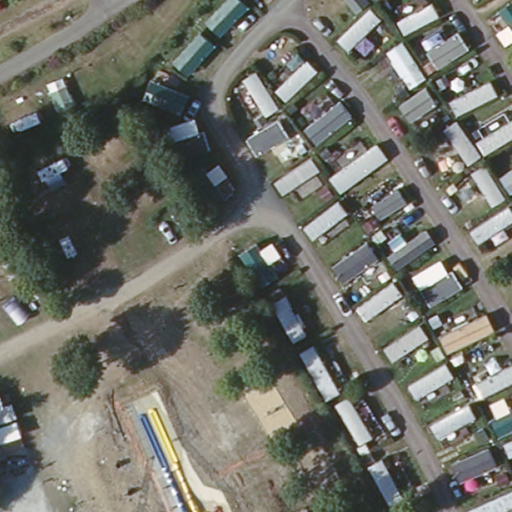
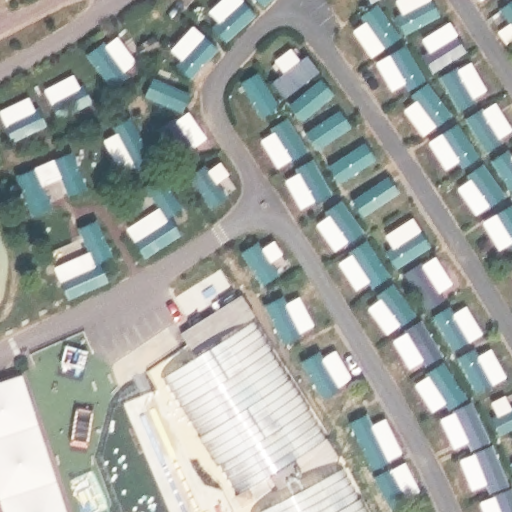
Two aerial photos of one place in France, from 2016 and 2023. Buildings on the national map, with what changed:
new [(331,437),(295,460),(303,473),(279,489),(272,478),(240,498),(166,378),(199,356),(185,335),(243,297),(331,437)]
new [(346,463),(372,512),(256,512),(346,463)]

